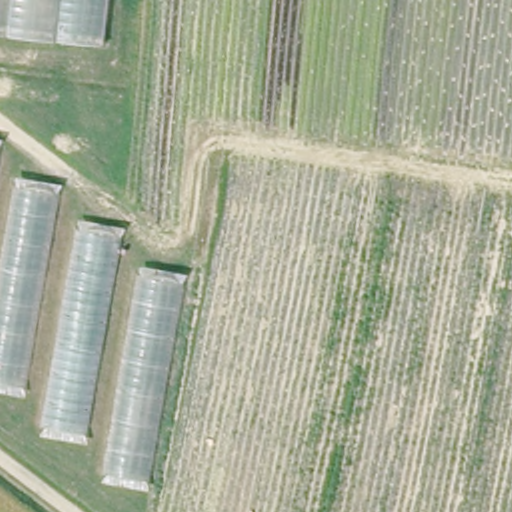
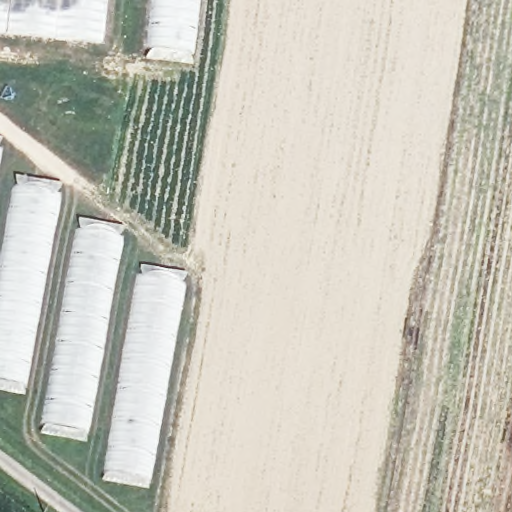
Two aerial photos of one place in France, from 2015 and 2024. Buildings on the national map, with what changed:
unchanged [(99,50),(0,38),(0,0),(104,0),(99,50)]
new [(148,19),(150,0),(199,0),(191,62),(145,57),(148,19)]
unchanged [(59,185),(21,399),(0,396),(0,234),(10,176),(59,185)]
unchanged [(73,219),(121,228),(84,447),(34,435),(73,219)]
unchanged [(137,265),(184,273),(146,492),(96,482),(137,265)]

